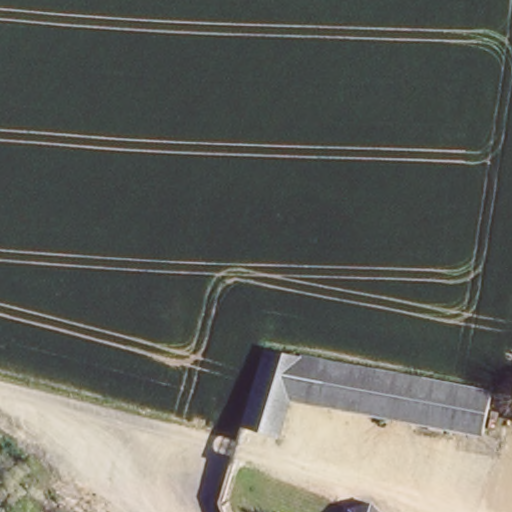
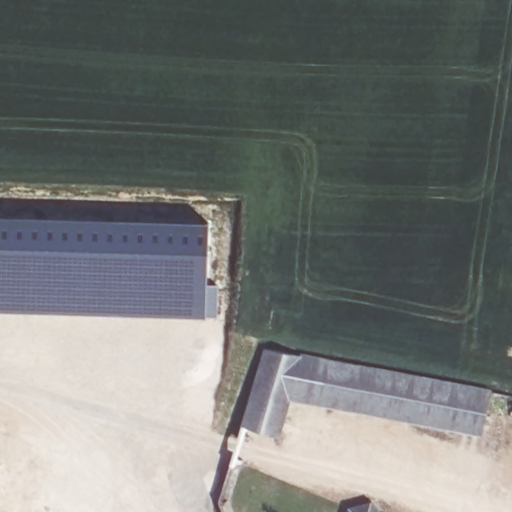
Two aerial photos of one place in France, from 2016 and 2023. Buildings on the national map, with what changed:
new [(208,223),(206,286),(218,286),(217,318),(208,317),(0,311),(0,216),(208,223)]
unchanged [(264,343),(481,384),(481,387),(474,425),(286,393),(276,428),(237,422),(264,343)]
unchanged [(356,503),(371,499),(385,512),(348,512),(351,501),(356,503)]

